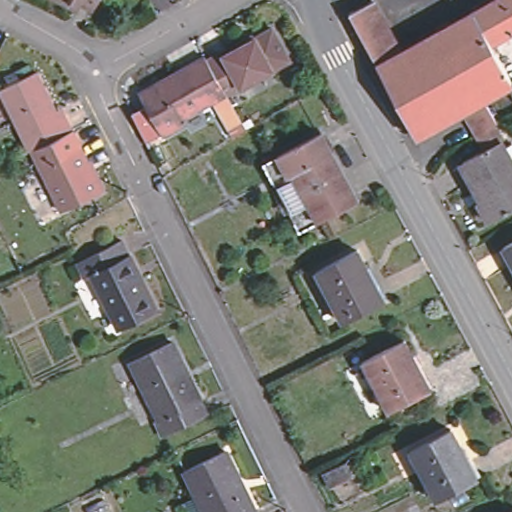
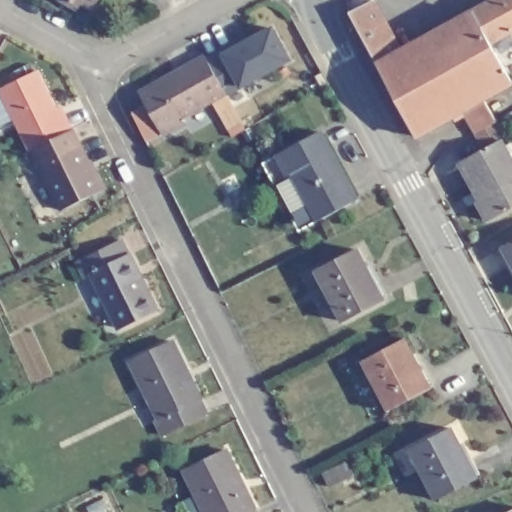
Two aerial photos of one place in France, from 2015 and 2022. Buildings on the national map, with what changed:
unchanged [(67,5),(59,0),(103,0),(97,11),(85,4),(80,11),(67,5)]
unchanged [(377,68),(364,45),(348,14),(372,2),(387,32),(400,55),(415,47),(420,44),(440,32),(472,16),(484,9),(500,0),(512,0),(512,31),(499,39),(487,45),(510,87),(482,102),(487,113),(493,123),(494,125),(474,137),(473,135),(467,125),(461,113),(452,117),(414,139),(402,117),(377,68)]
unchanged [(216,100),(185,117),(187,121),(167,132),(145,94),(142,89),(164,77),(207,52),(210,57),(227,48),(229,51),(277,25),(294,55),(245,82),(229,91),(229,92),(245,121),(232,128),(216,100)]
unchanged [(29,146),(25,148),(0,93),(0,84),(34,69),(52,107),(59,104),(62,111),(70,127),(79,144),(100,187),(59,208),(37,164),(29,146)]
unchanged [(324,135),(357,204),(317,223),(293,174),(289,176),(279,158),(324,135)]
unchanged [(487,145),(512,184),(512,208),(480,228),(468,209),(473,206),(450,168),(487,145)]
unchanged [(289,176),(293,174),(317,223),(299,232),(265,166),(279,158),(289,176)]
unchanged [(125,244),(159,311),(122,330),(95,276),(90,278),(87,280),(79,265),(83,263),(125,244)]
unchanged [(512,244),(512,271),(500,252),(512,244)]
unchanged [(356,253),(381,301),(340,322),(315,274),(356,253)]
unchanged [(402,341),(428,390),(387,412),(361,363),(402,341)]
unchanged [(158,420),(161,418),(135,364),(175,344),(190,375),(182,378),(195,403),(202,400),(209,416),(166,437),(158,420)]
unchanged [(450,427),(475,477),(434,497),(408,447),(450,427)]
unchanged [(190,497),(193,496),(181,471),(222,452),(237,483),(232,486),(244,512),(184,512),(179,502),(190,497)]
unchanged [(355,474),(331,486),(325,475),(350,462),(355,474)]
unchanged [(251,512),(244,512),(250,509),(251,512)]

